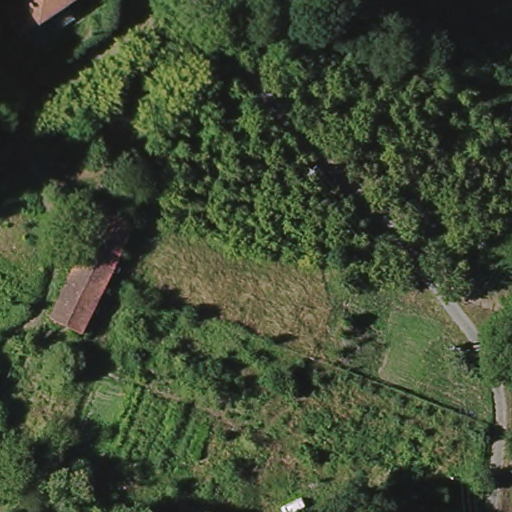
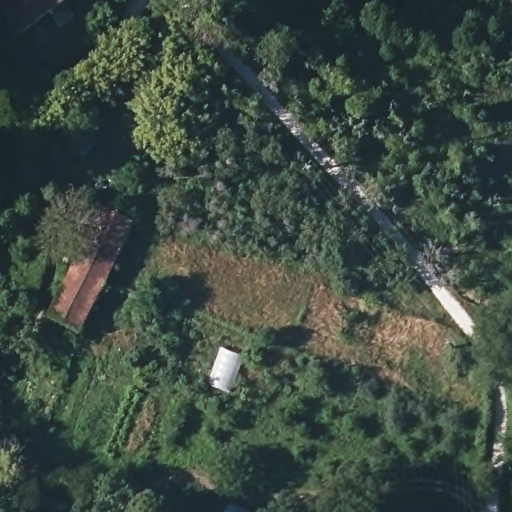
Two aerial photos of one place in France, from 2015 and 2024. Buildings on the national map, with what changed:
unchanged [(7,7),(7,4),(12,1),(14,0),(74,0),(25,33),(7,7)]
unchanged [(85,332),(57,317),(70,289),(107,213),(138,229),(111,280),(85,332)]

